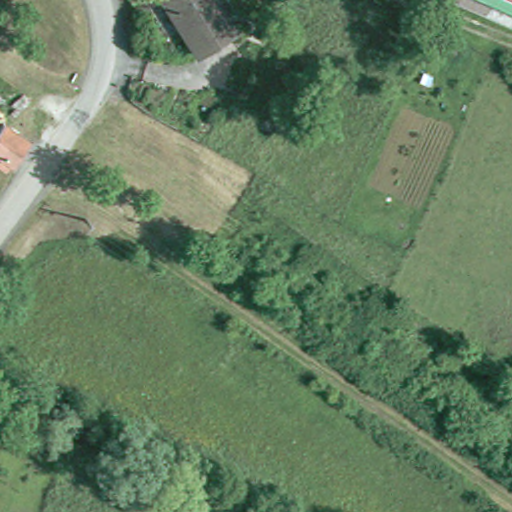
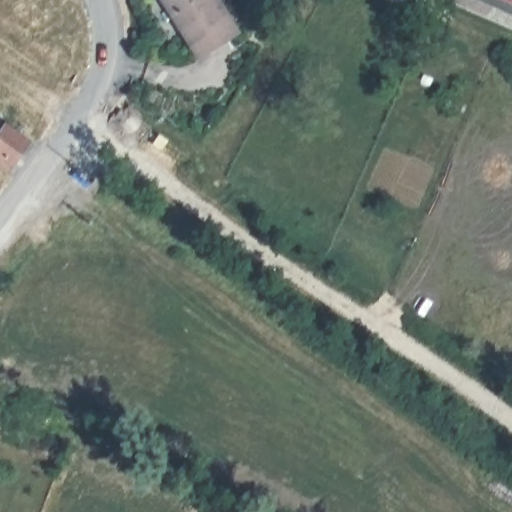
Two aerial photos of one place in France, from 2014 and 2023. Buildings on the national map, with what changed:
unchanged [(206,51),(200,54),(175,0),(223,0),(226,5),(239,35),(206,51)]
unchanged [(37,138),(14,171),(0,161),(0,137),(12,120),(37,138)]

